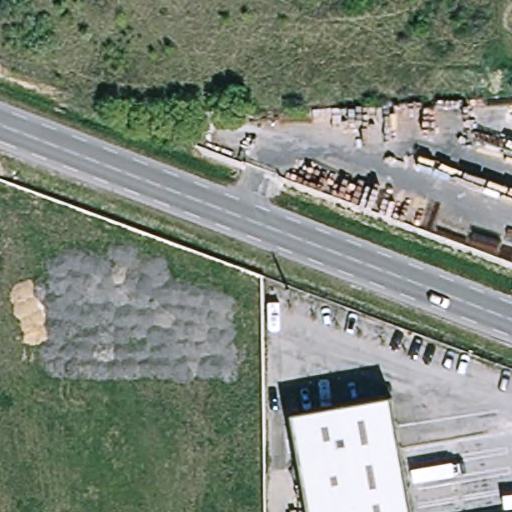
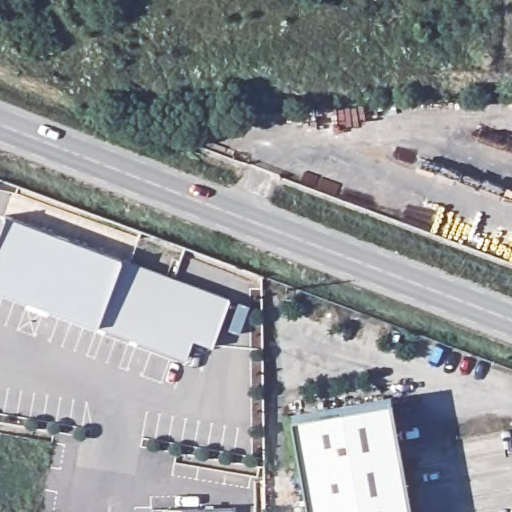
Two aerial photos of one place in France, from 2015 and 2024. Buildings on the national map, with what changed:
new [(193,340),(186,357),(97,325),(0,289),(0,232),(6,216),(122,259),(229,298),(212,347),(193,340)]
unchanged [(415,512),(310,512),(293,419),(394,401),(415,512)]
new [(233,512),(182,512),(182,510),(233,510),(233,512)]

